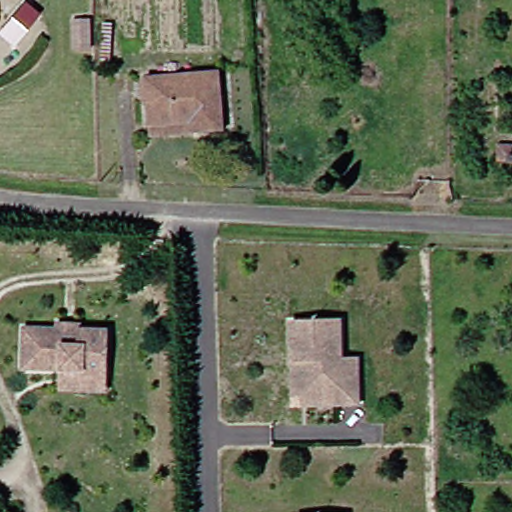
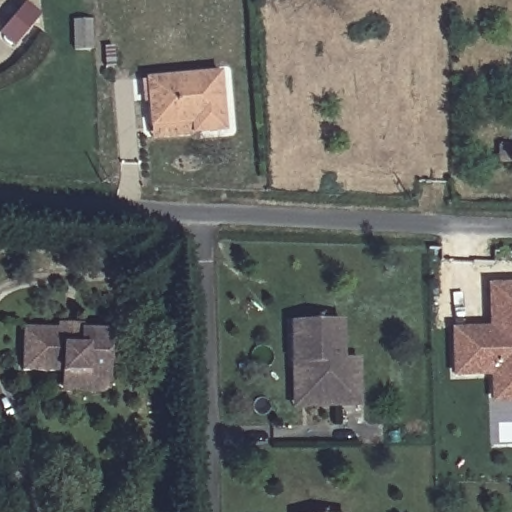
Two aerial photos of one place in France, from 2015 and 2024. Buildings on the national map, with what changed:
new [(28,1),(42,12),(17,43),(3,32),(28,1)]
unchanged [(140,122),(138,73),(211,71),(212,129),(189,130),(140,132),(140,122)]
new [(497,146),(512,146),(512,164),(497,163),(497,146)]
demolished [(507,156),(512,156),(512,173),(507,173),(507,156)]
new [(489,327),(488,284),(512,284),(512,403),(496,403),(493,376),(452,377),(451,329),(489,327)]
unchanged [(54,392),(52,373),(15,372),(13,329),(47,330),(47,322),(73,321),(73,330),(96,331),(98,380),(98,393),(54,392)]
unchanged [(293,366),(290,327),(339,324),(342,364),(358,363),(360,406),(345,407),(297,410),(293,366)]

